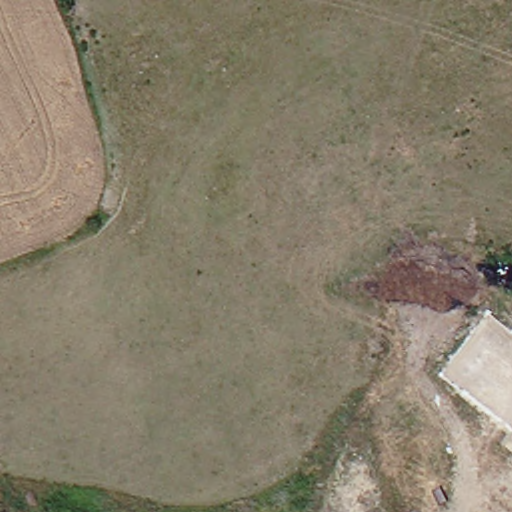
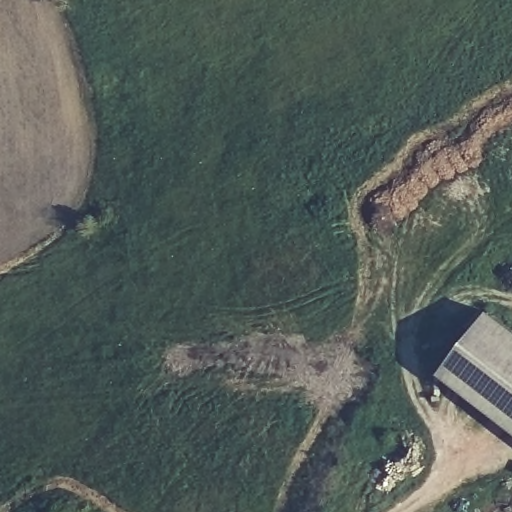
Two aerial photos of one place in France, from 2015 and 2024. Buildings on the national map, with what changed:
new [(488,311),(512,330),(512,431),(439,375),(488,311)]

